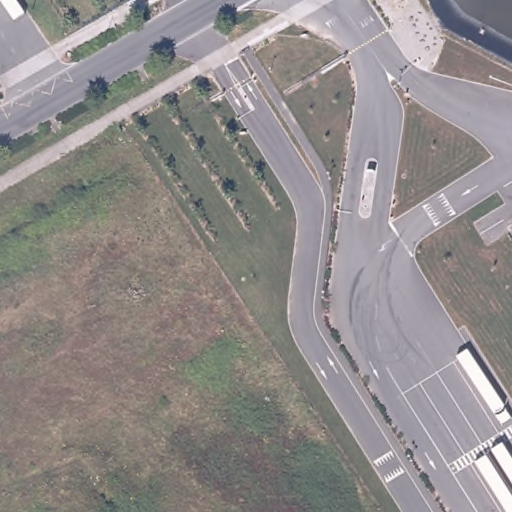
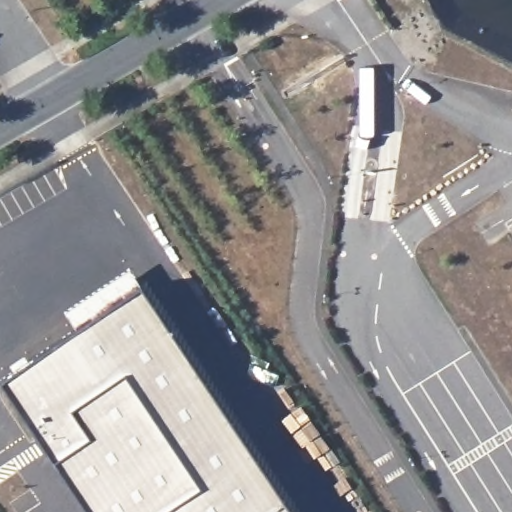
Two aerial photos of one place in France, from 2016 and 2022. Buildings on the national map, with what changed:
new [(0,385),(0,378),(140,285),(290,512),(85,512),(0,385)]

